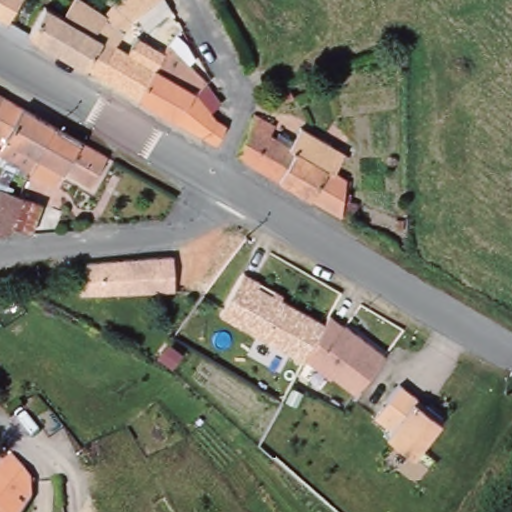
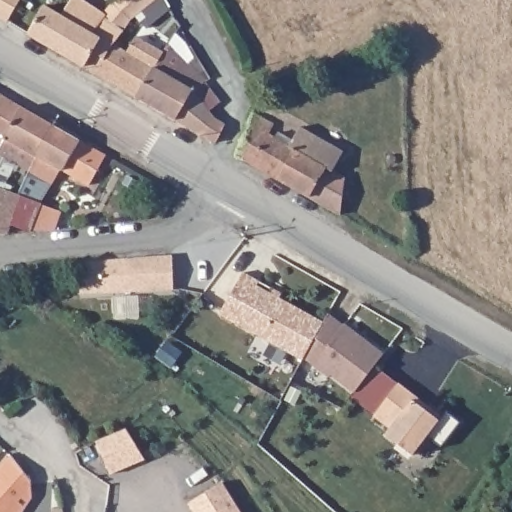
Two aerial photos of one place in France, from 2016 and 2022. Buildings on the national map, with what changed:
unchanged [(12,19),(0,12),(0,0),(24,0),(12,19)]
unchanged [(120,0),(172,0),(175,7),(151,26),(140,13),(137,16),(119,37),(114,44),(99,70),(89,64),(33,31),(49,3),(66,13),(74,0),(92,0),(109,11),(120,0)]
unchanged [(220,140),(210,134),(141,95),(168,49),(171,42),(158,32),(176,10),(186,24),(181,31),(190,41),(198,51),(190,59),(210,79),(200,90),(219,116),(229,122),(220,140)]
unchanged [(131,49),(141,34),(168,49),(141,95),(99,70),(114,44),(119,37),(131,49)]
unchanged [(0,105),(0,89),(7,93),(0,105)]
unchanged [(51,136),(34,169),(0,150),(0,105),(7,93),(57,122),(51,136)]
unchanged [(344,152),(333,171),(345,178),(344,191),(350,192),(350,200),(358,203),(350,221),(344,218),(301,193),(258,168),(237,155),(246,133),(253,114),(274,125),(269,134),(276,138),(279,132),(293,140),(300,127),(344,152)]
unchanged [(111,153),(94,183),(66,167),(57,182),(34,169),(51,136),(57,122),(111,153)]
unchanged [(0,231),(0,190),(2,184),(23,192),(25,193),(46,200),(35,230),(13,231),(0,231)]
unchanged [(178,290),(85,293),(89,273),(84,273),(73,274),(73,264),(177,257),(178,290)]
unchanged [(302,359),(219,313),(243,271),(259,280),(257,285),(323,322),(302,359)]
unchanged [(302,359),(323,322),(328,313),(343,325),(342,326),(381,356),(352,395),(328,377),(327,380),(301,361),(302,359)]
unchanged [(181,354),(170,367),(157,356),(168,343),(181,354)]
unchanged [(413,457),(383,435),(389,427),(375,416),(399,383),(442,415),(413,457)]
new [(124,430),(141,461),(107,475),(93,441),(124,430)]
unchanged [(27,512),(0,512),(0,473),(11,461),(31,485),(33,503),(27,512)]
new [(243,512),(195,512),(189,502),(223,481),(243,512)]

